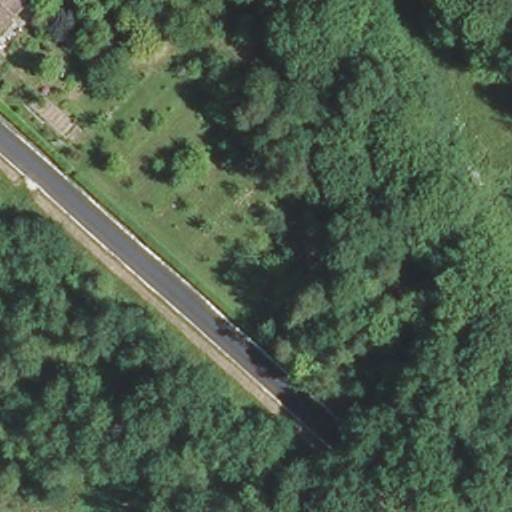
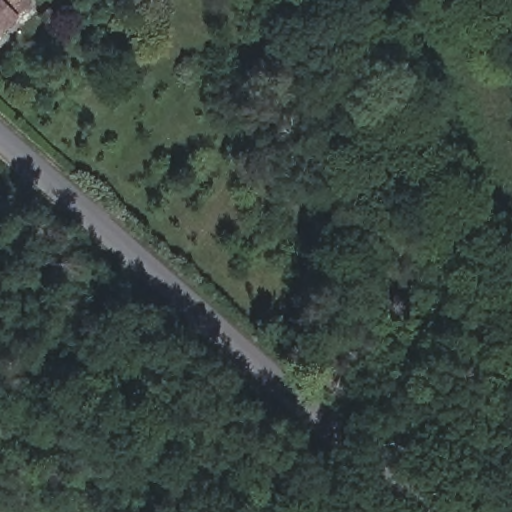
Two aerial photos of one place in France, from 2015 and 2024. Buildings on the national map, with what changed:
unchanged [(16,0),(0,18),(0,0),(16,0)]

